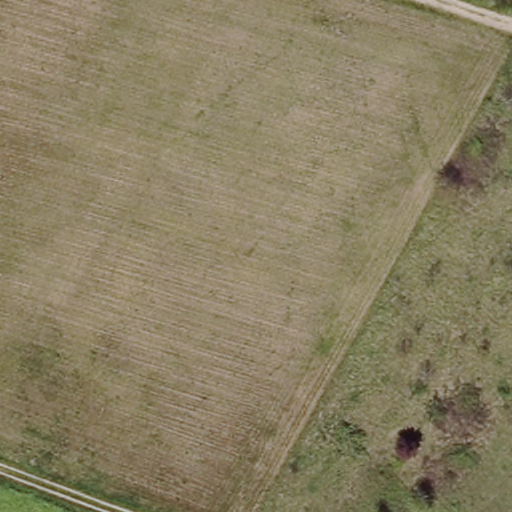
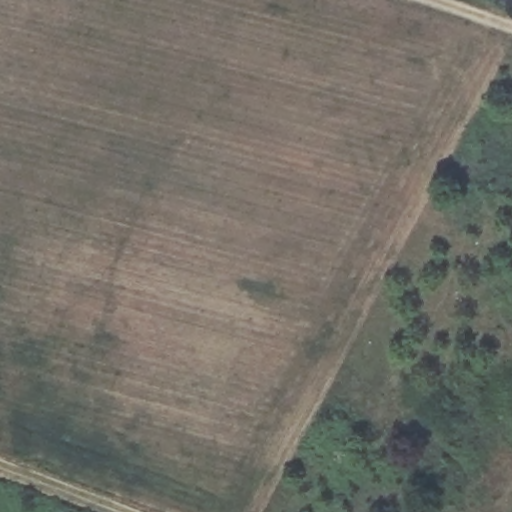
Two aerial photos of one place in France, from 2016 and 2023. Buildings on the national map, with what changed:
[]

